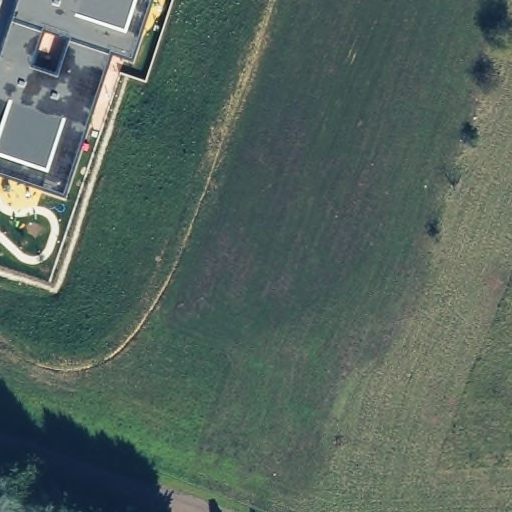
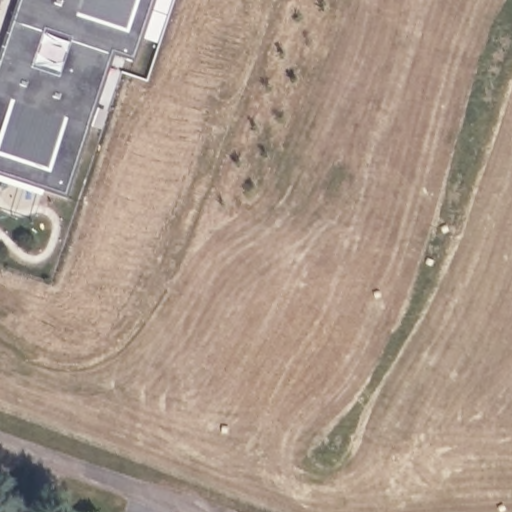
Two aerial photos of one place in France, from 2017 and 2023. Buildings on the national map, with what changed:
unchanged [(133,60),(112,55),(65,195),(0,175),(0,51),(17,0),(152,0),(133,60)]

